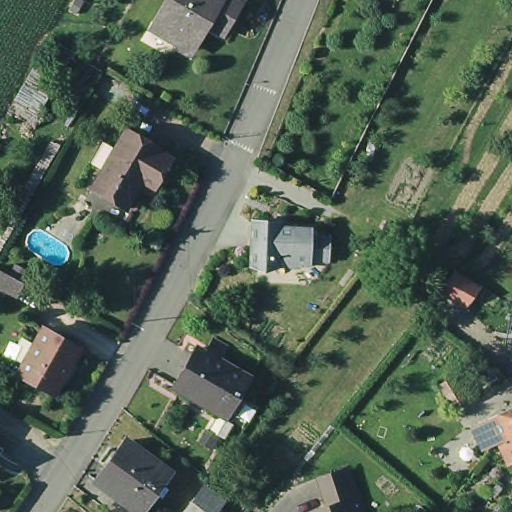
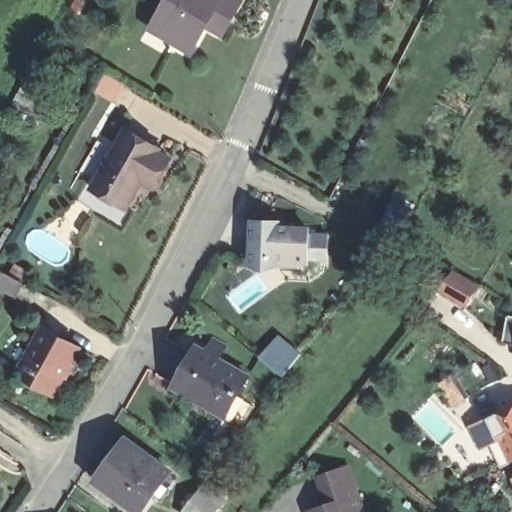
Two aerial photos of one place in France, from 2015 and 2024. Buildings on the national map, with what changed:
unchanged [(233,0),(217,28),(204,22),(188,51),(164,37),(168,30),(153,22),(166,0),(233,0)]
unchanged [(153,144),(151,149),(162,155),(146,182),(136,176),(119,204),(84,184),(118,126),(153,144)]
unchanged [(320,234),(319,256),(301,255),(301,259),(298,259),(294,259),(291,262),(282,262),(277,258),(271,258),(256,265),(244,262),(246,219),(273,220),(273,225),(303,226),(302,233),(315,233),(320,234)]
new [(21,277),(14,289),(4,284),(0,291),(0,266),(8,270),(21,277)]
unchanged [(479,285),(467,308),(439,294),(454,272),(479,285)]
unchanged [(83,353),(56,398),(20,380),(8,373),(24,342),(38,349),(46,333),(83,353)]
new [(301,354),(281,378),(257,360),(277,335),(301,354)]
unchanged [(223,433),(213,426),(167,399),(191,359),(198,364),(206,351),(221,360),(213,373),(242,389),(230,409),(236,412),(223,433)]
unchanged [(449,375),(464,396),(452,405),(438,383),(449,375)]
unchanged [(481,445),(471,424),(481,419),(487,416),(512,404),(512,457),(508,459),(498,437),(490,441),(481,445)]
unchanged [(161,473),(147,494),(134,512),(127,512),(96,489),(89,484),(107,460),(120,443),(161,473)]
unchanged [(365,512),(305,512),(305,510),(321,505),(312,477),(349,465),(365,512)]
unchanged [(181,506),(193,489),(199,482),(221,497),(215,505),(210,512),(188,512),(181,506)]
unchanged [(491,510),(493,512),(489,512),(491,510)]

